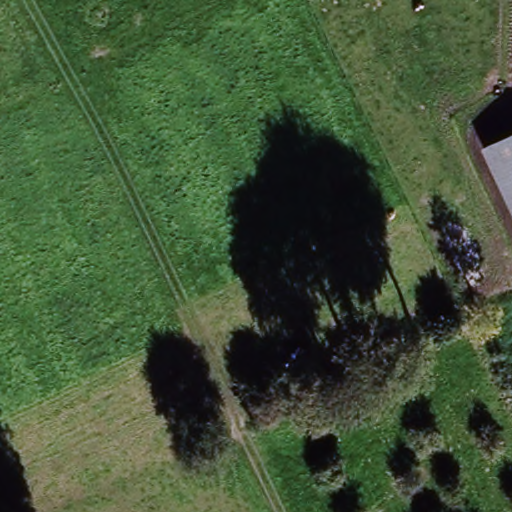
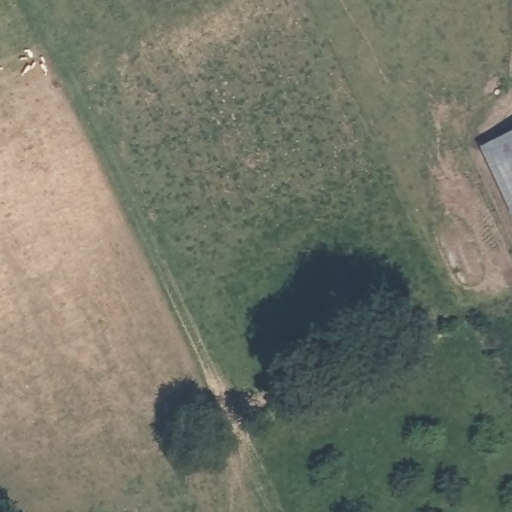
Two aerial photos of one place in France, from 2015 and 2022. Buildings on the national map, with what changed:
unchanged [(485,152),(512,140),(512,202),(485,152)]

